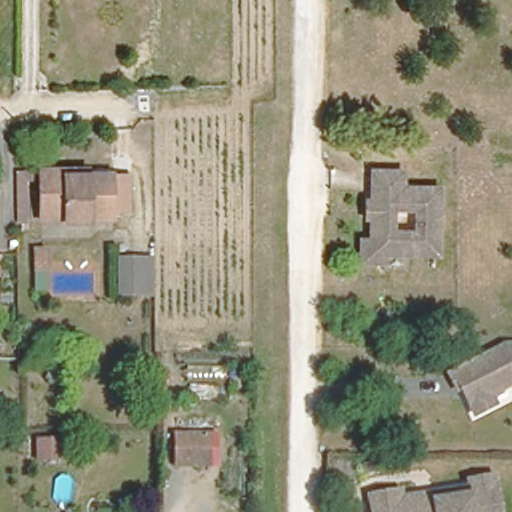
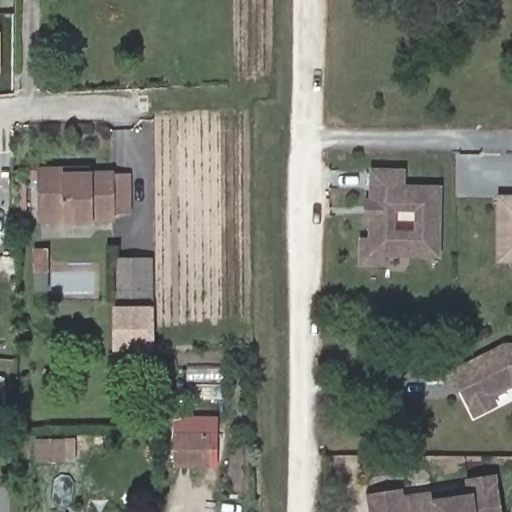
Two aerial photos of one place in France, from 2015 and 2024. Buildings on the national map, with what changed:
unchanged [(36,215),(35,164),(67,164),(81,164),(81,169),(105,169),(125,169),(125,206),(106,207),(106,214),(86,214),(61,215),(41,215),(36,215)]
unchanged [(356,265),(356,243),(366,243),(367,219),(362,218),(362,203),(367,203),(368,172),(398,173),(398,189),(434,190),(432,257),(378,255),(377,265),(356,265)]
new [(499,199),(512,199),(512,261),(498,261),(499,199)]
unchanged [(116,295),(115,249),(151,249),(155,293),(116,295)]
new [(123,312),(154,312),(154,351),(123,351),(116,351),(116,312),(123,312)]
unchanged [(503,339),(512,340),(512,385),(508,384),(494,392),(500,406),(470,418),(443,369),(503,339)]
unchanged [(179,429),(203,429),(214,429),(215,459),(204,459),(180,459),(179,429)]
unchanged [(363,487),(393,483),(396,489),(409,488),(465,480),(463,472),(490,468),(497,512),(367,512),(363,487)]

